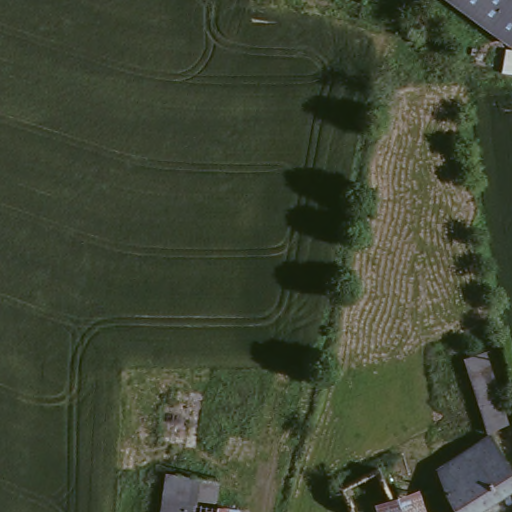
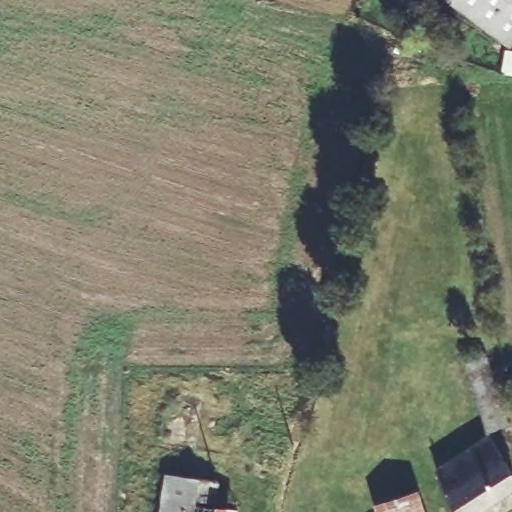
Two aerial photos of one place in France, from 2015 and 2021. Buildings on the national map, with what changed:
unchanged [(512,2),(512,38),(506,46),(443,0),(509,0),(512,2)]
unchanged [(512,2),(509,0),(512,0),(512,2)]
unchanged [(487,353),(510,425),(488,432),(465,361),(487,353)]
unchanged [(512,477),(512,488),(475,512),(456,512),(445,493),(437,468),(488,435),(512,477)]
unchanged [(217,485),(214,505),(195,502),(194,512),(159,512),(164,476),(217,485)]
unchanged [(387,500),(410,493),(417,512),(372,512),(370,506),(387,500)]
unchanged [(194,512),(195,502),(214,505),(231,512),(194,512)]

